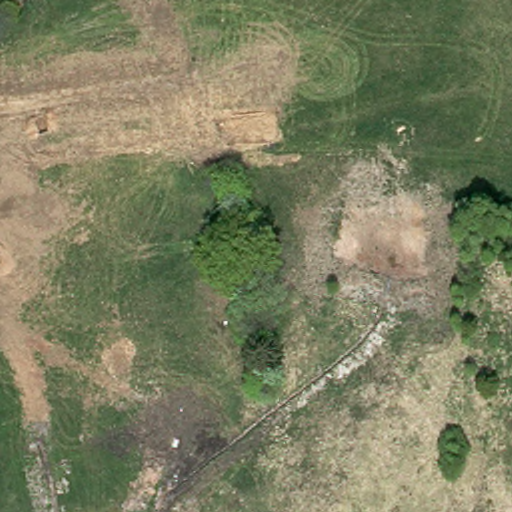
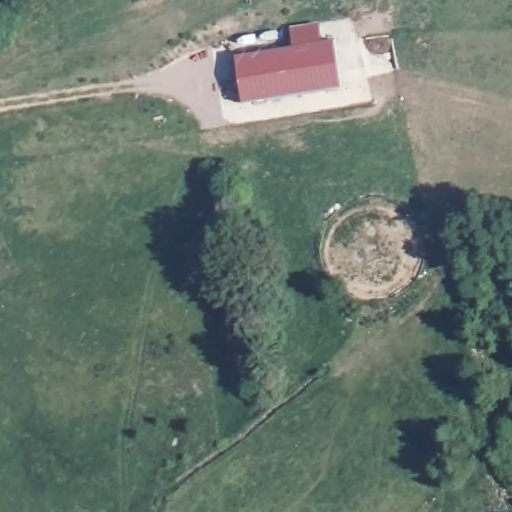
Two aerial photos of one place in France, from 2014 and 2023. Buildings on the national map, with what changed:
new [(234,57),(335,41),(342,89),(242,105),(234,57)]

